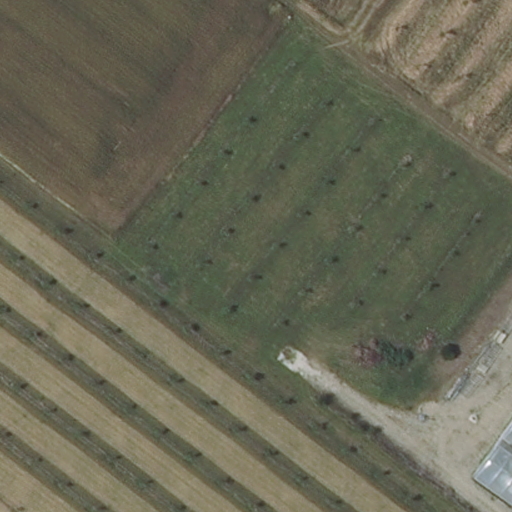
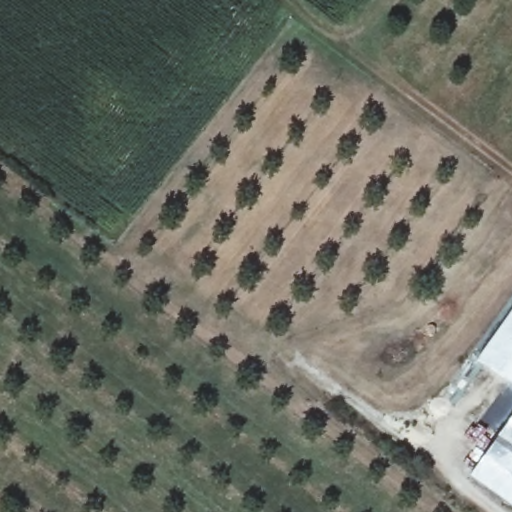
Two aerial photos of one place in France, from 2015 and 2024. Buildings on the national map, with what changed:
new [(512,313),(512,383),(478,360),(512,313)]
unchanged [(512,417),(512,507),(470,477),(512,417)]

